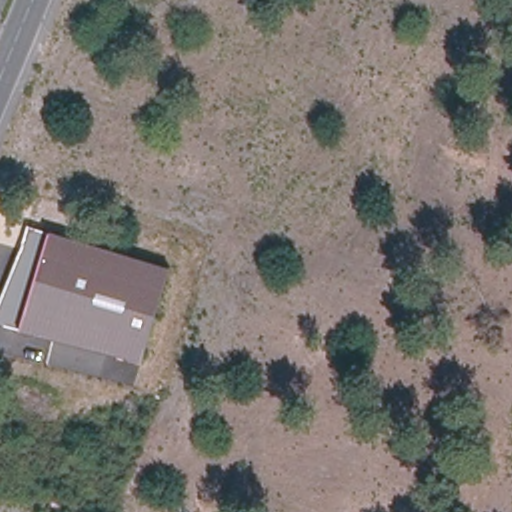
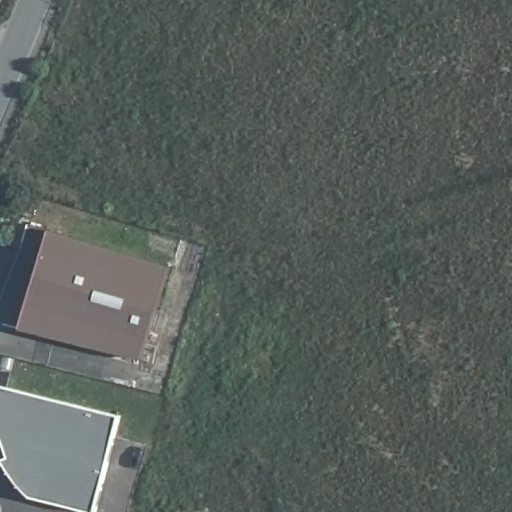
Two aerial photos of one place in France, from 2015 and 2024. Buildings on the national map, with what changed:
unchanged [(0,323),(0,303),(24,244),(28,225),(50,231),(170,267),(142,362),(19,330),(0,323)]
new [(92,512),(32,496),(26,492),(14,478),(4,463),(0,453),(0,384),(120,415),(96,512),(92,512)]

